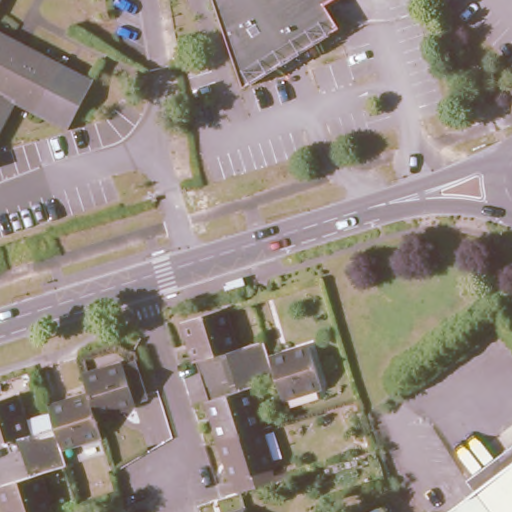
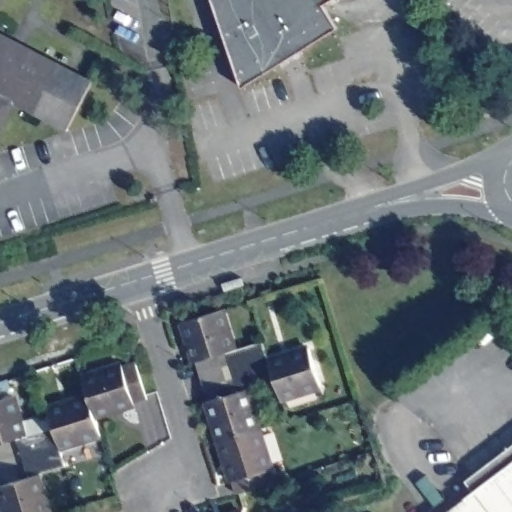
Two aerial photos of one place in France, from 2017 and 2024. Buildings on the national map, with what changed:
unchanged [(0,5),(0,0),(3,0),(0,5)]
unchanged [(343,22),(245,82),(218,0),(330,0),(343,22)]
unchanged [(62,63),(93,80),(67,131),(35,113),(15,103),(0,134),(0,30),(62,63)]
unchanged [(2,165),(0,166),(0,161),(2,165)]
unchanged [(200,373),(197,360),(195,361),(185,323),(222,311),(233,348),(262,340),(267,353),(268,360),(309,348),(320,386),(281,399),(275,380),(247,388),(259,429),(220,440),(208,400),(203,385),(200,373)]
unchanged [(147,395),(93,410),(87,391),(82,372),(135,356),(147,395)]
unchanged [(23,460),(19,447),(56,435),(52,422),(46,403),(87,391),(93,410),(99,428),(58,441),(60,448),(23,460)]
unchanged [(12,392),(23,431),(52,422),(56,435),(19,447),(15,434),(0,438),(0,396),(12,392)]
unchanged [(237,493),(220,440),(259,429),(275,481),(237,493)]
unchanged [(7,512),(0,490),(0,481),(27,473),(23,460),(60,448),(65,461),(36,470),(48,510),(42,512),(7,512)]
unchanged [(512,512),(441,512),(512,461),(512,512)]
unchanged [(244,512),(234,512),(243,509),(244,512)]
unchanged [(49,512),(42,512),(48,510),(49,512)]

